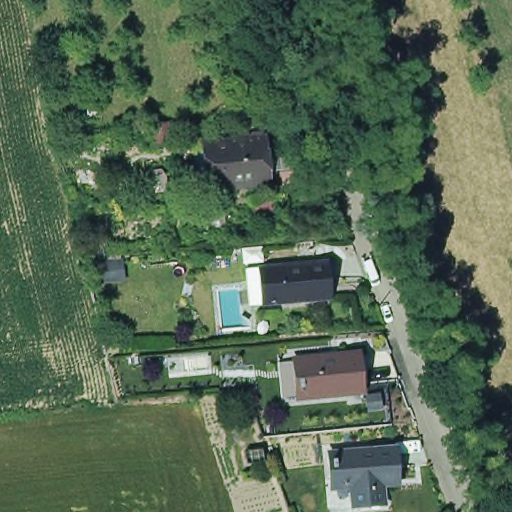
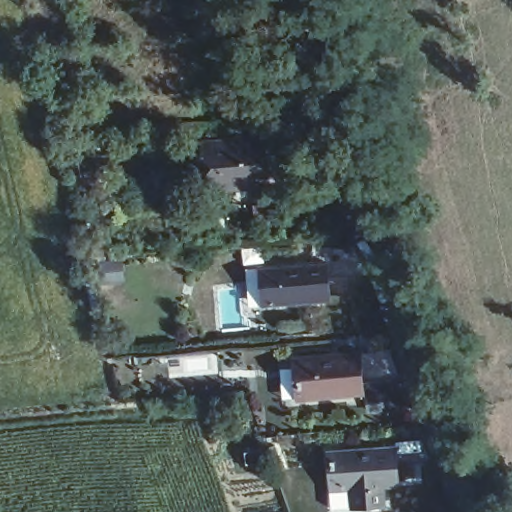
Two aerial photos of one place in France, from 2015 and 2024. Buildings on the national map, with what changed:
unchanged [(152,125),(170,124),(171,143),(158,144),(152,125)]
unchanged [(196,179),(196,169),(210,167),(206,145),(215,145),(271,139),(276,186),(222,192),(211,193),(196,179)]
unchanged [(258,203),(278,202),(279,217),(259,219),(258,203)]
unchanged [(336,301),(274,308),(270,270),(332,264),(336,301)]
unchanged [(304,388),(304,379),(306,376),(304,361),(363,354),(367,393),(309,399),(308,389),(304,388)]
unchanged [(343,469),(342,454),(392,451),(394,472),(404,472),(404,484),(386,486),(388,508),(356,511),(354,488),(340,488),(339,478),(335,478),(335,469),(343,469)]
unchanged [(243,466),(246,456),(262,459),(259,469),(243,466)]

